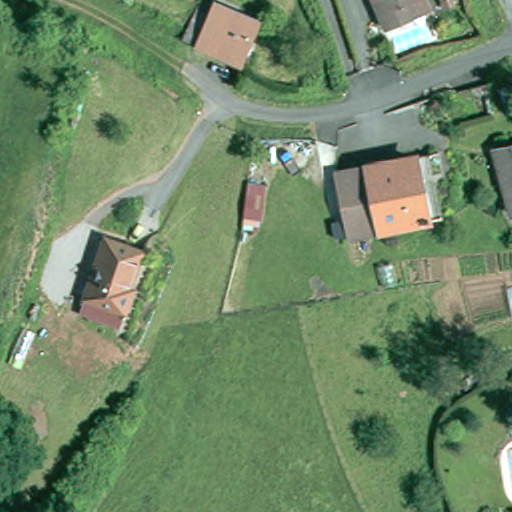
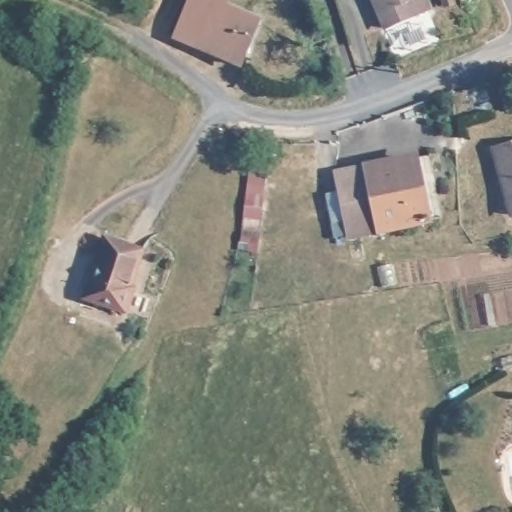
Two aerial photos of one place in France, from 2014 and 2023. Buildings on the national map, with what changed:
unchanged [(256,25),(240,64),(183,40),(201,0),(209,0),(259,20),(256,25)]
unchanged [(416,21),(387,33),(372,0),(422,0),(429,15),(416,21)]
unchanged [(488,85),(494,113),(461,122),(454,93),(488,85)]
unchanged [(512,147),(512,211),(509,202),(496,151),(512,147)]
unchanged [(429,155),(443,218),(356,236),(350,237),(337,174),(429,155)]
unchanged [(90,293),(111,234),(148,247),(136,283),(138,284),(131,307),(125,322),(85,308),(90,293)]

